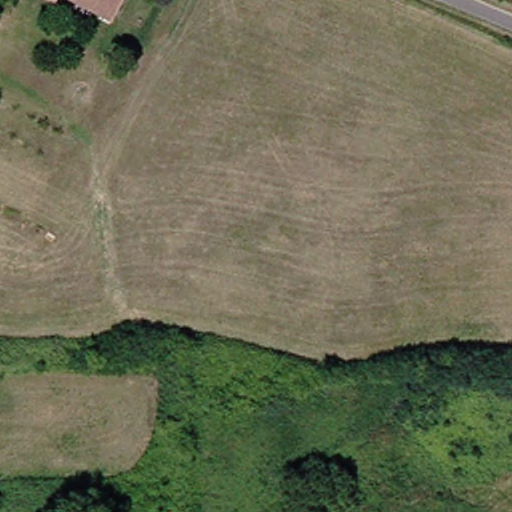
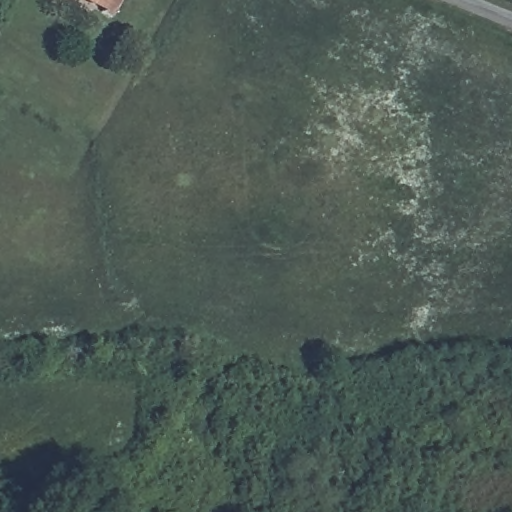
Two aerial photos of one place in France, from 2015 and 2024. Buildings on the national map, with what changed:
unchanged [(71,0),(117,0),(106,15),(102,21),(71,0)]

